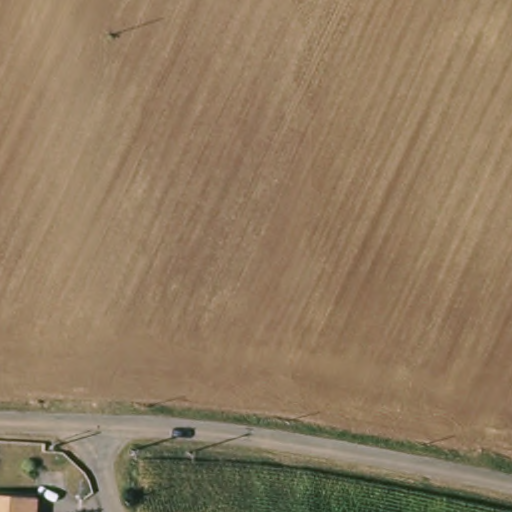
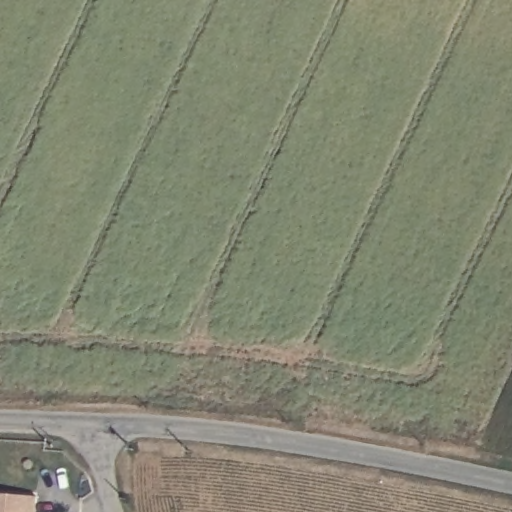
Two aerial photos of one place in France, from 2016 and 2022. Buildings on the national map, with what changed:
unchanged [(34,502),(34,512),(0,512),(0,500),(34,502)]

